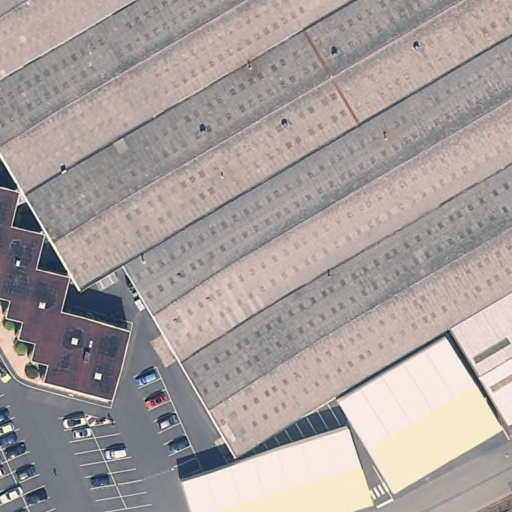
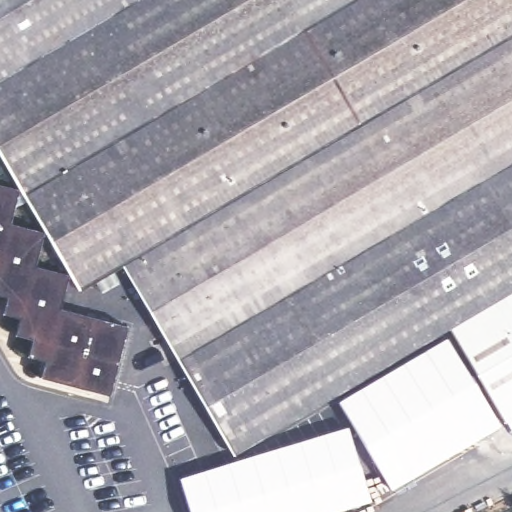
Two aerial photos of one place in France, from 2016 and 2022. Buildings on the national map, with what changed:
unchanged [(126,264),(83,289),(0,147),(0,0),(512,0),(512,296),(453,330),(260,443),(238,456),(226,436),(126,264)]
unchanged [(22,190),(16,224),(47,235),(40,267),(73,275),(65,310),(131,327),(114,396),(45,378),(49,361),(32,356),(36,339),(20,335),(24,319),(7,314),(12,297),(0,294),(0,184),(22,190)]
unchanged [(512,423),(509,424),(453,330),(512,296),(512,423)]

